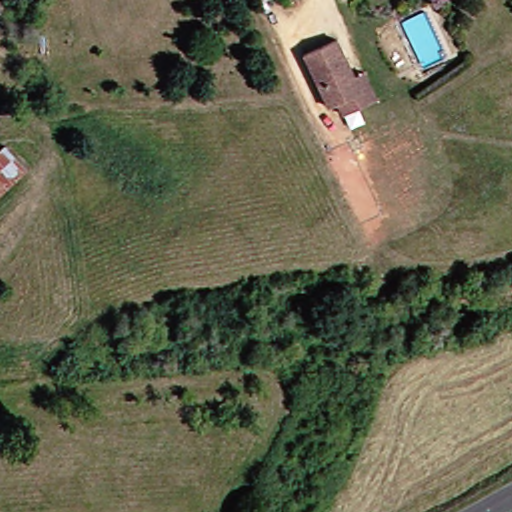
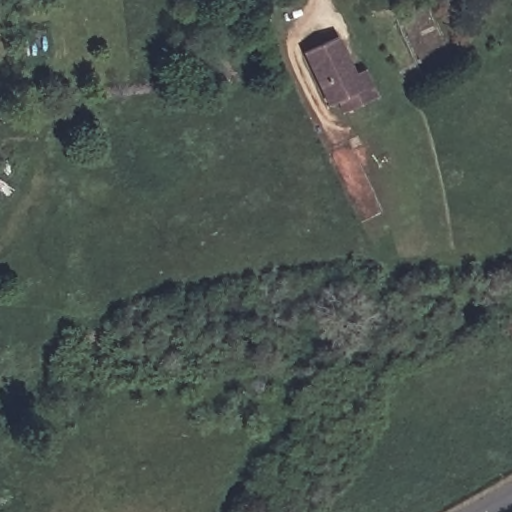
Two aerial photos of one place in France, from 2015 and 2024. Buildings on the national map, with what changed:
unchanged [(382,92),(349,107),(342,96),(332,100),(310,51),(343,38),(358,71),(370,66),(382,92)]

